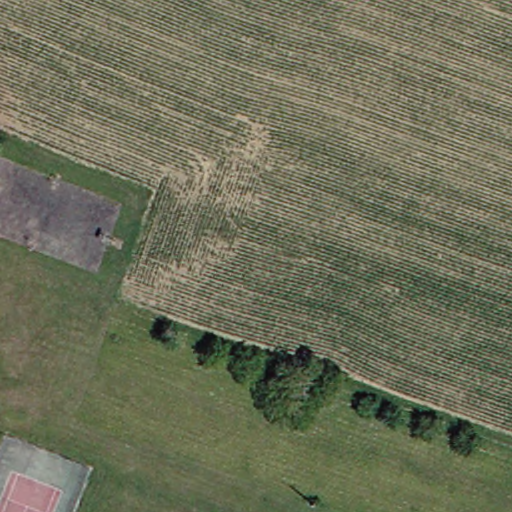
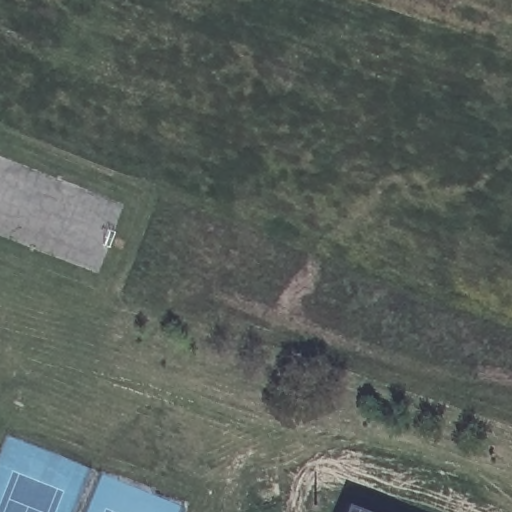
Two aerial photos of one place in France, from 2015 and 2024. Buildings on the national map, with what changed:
new [(372,512),(342,512),(346,502),(372,512)]

